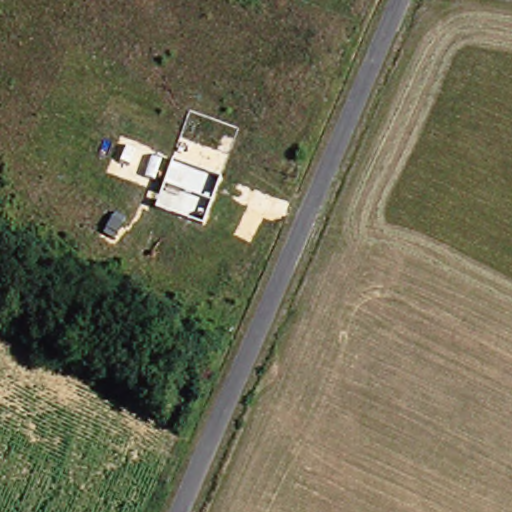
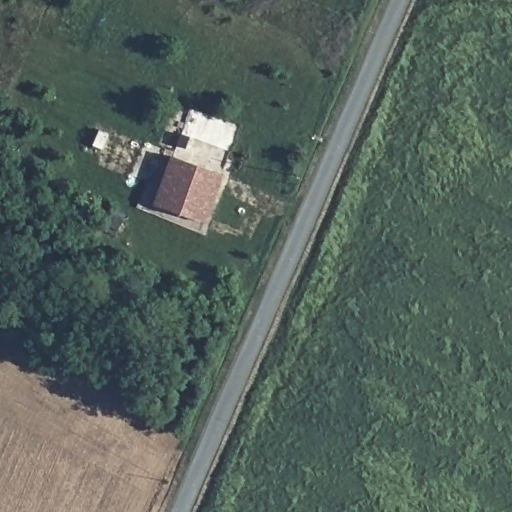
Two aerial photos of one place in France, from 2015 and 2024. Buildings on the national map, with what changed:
new [(224,176),(205,225),(153,206),(170,156),(224,176)]

